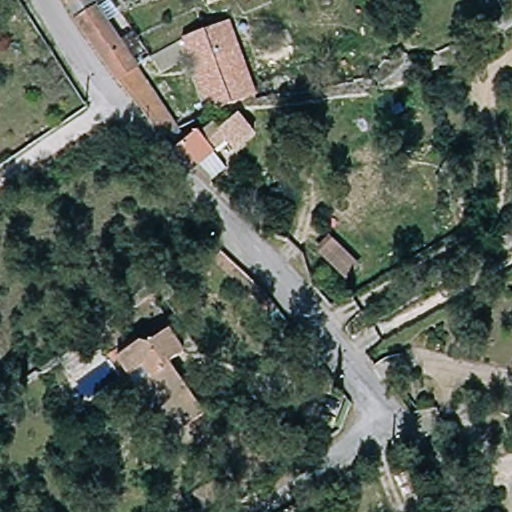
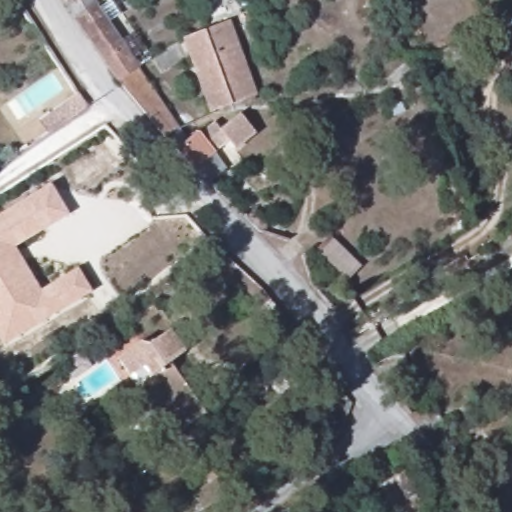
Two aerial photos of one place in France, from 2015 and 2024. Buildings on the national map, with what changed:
unchanged [(117,85),(83,40),(61,0),(101,0),(92,4),(183,140),(168,146),(153,129),(117,85)]
unchanged [(214,113),(180,50),(226,26),(258,90),(219,110),(214,113)]
new [(73,94),(83,109),(72,118),(64,108),(60,104),(73,94)]
new [(72,118),(46,137),(38,126),(64,108),(72,118)]
unchanged [(207,186),(195,171),(179,153),(202,130),(215,120),(223,130),(243,113),(258,134),(237,149),(230,140),(218,150),(231,164),(207,186)]
new [(71,210),(47,223),(16,240),(41,286),(78,265),(90,287),(19,326),(0,293),(0,210),(31,193),(55,180),(71,210)]
unchanged [(260,310),(212,262),(222,254),(248,279),(269,300),(260,310)]
new [(1,336),(0,335),(0,293),(19,326),(1,336)]
unchanged [(135,341),(143,343),(164,329),(179,351),(165,360),(199,411),(168,431),(116,354),(135,341)]
unchanged [(408,465),(418,487),(404,493),(394,472),(408,465)]
unchanged [(220,498),(209,505),(199,490),(220,475),(231,491),(220,498)]

